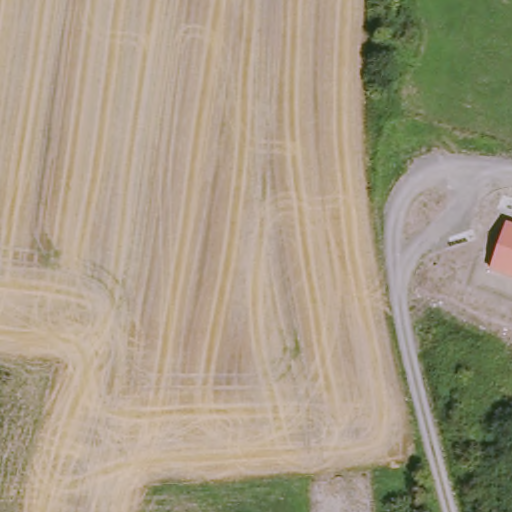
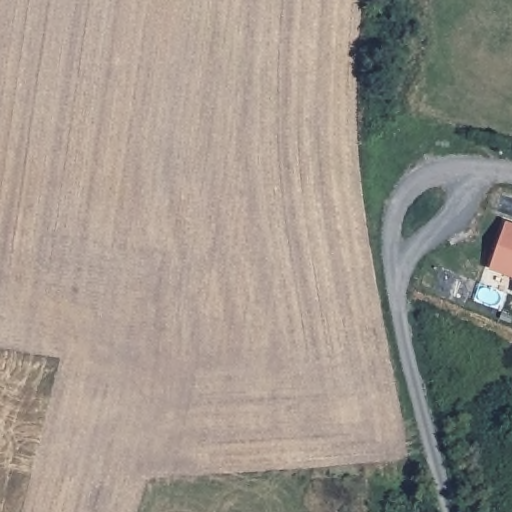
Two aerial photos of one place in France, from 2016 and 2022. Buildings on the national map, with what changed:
unchanged [(512,224),(512,278),(491,270),(508,222),(512,224)]

